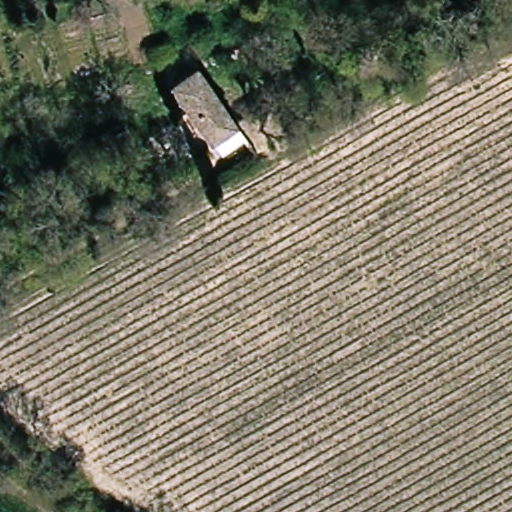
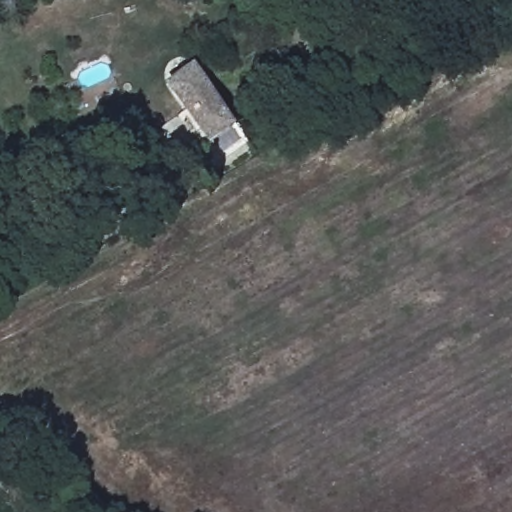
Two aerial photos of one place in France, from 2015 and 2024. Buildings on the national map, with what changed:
unchanged [(164,92),(190,71),(235,120),(208,145),(164,92)]

